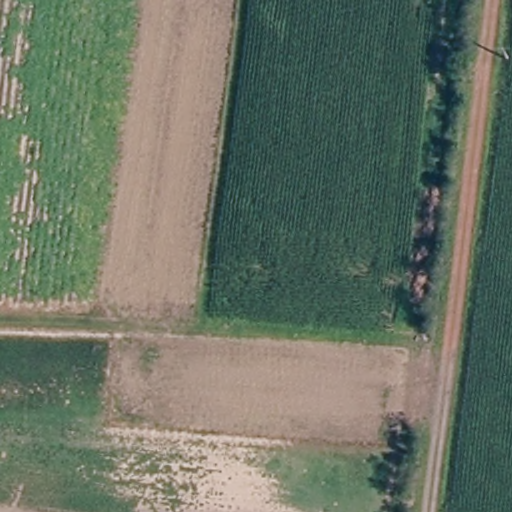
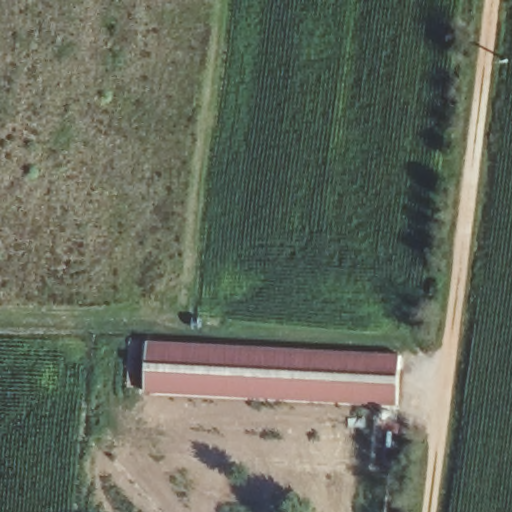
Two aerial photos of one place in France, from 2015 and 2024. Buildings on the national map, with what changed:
new [(147,343),(402,357),(400,404),(145,390),(147,343)]

